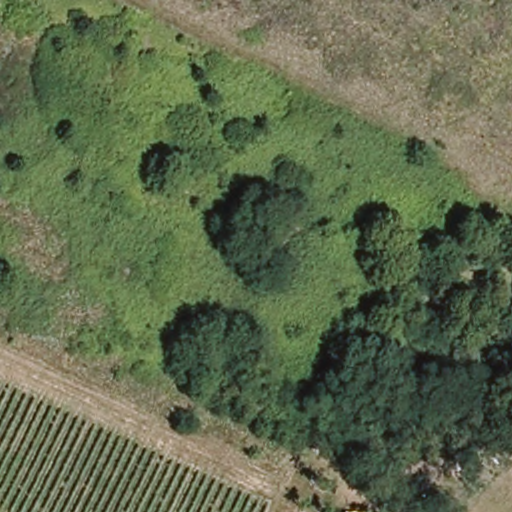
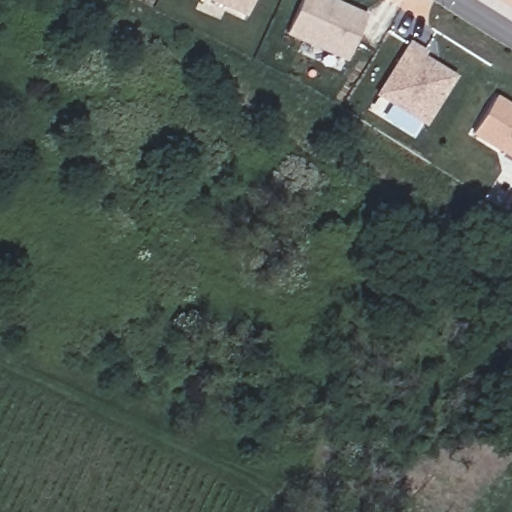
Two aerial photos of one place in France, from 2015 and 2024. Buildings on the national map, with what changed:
new [(211,0),(259,0),(251,18),(211,0)]
new [(292,35),(308,0),(329,0),(371,19),(352,62),(292,35)]
new [(430,125),(383,96),(415,45),(429,54),(425,59),(458,79),(430,125)]
new [(500,98),(512,106),(512,157),(477,135),(500,98)]
new [(512,204),(512,214),(507,211),(512,204)]

